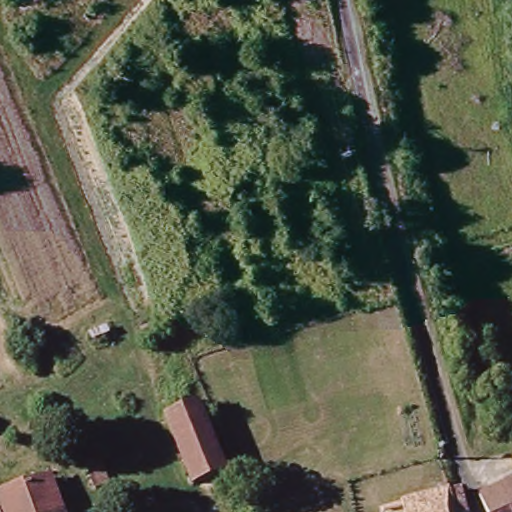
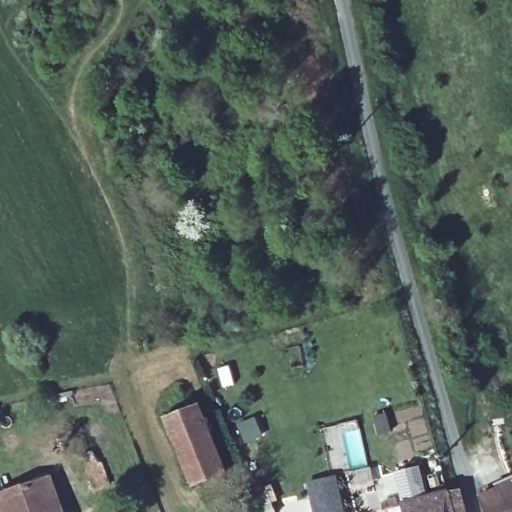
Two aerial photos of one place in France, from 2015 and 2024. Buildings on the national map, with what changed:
unchanged [(223,473),(192,485),(167,421),(198,408),(223,473)]
unchanged [(107,486),(94,490),(86,467),(99,463),(107,486)]
unchanged [(0,499),(0,491),(60,471),(67,493),(58,496),(63,512),(4,512),(0,499)]
unchanged [(505,503),(509,512),(488,512),(476,485),(480,483),(512,473),(512,501),(505,503)]
new [(339,485),(343,484),(344,490),(340,491),(345,512),(314,512),(308,489),(313,488),(311,481),(336,475),(339,485)]
unchanged [(466,512),(404,512),(402,505),(455,492),(460,490),(466,512)]
unchanged [(505,503),(512,501),(512,512),(509,512),(505,503)]

